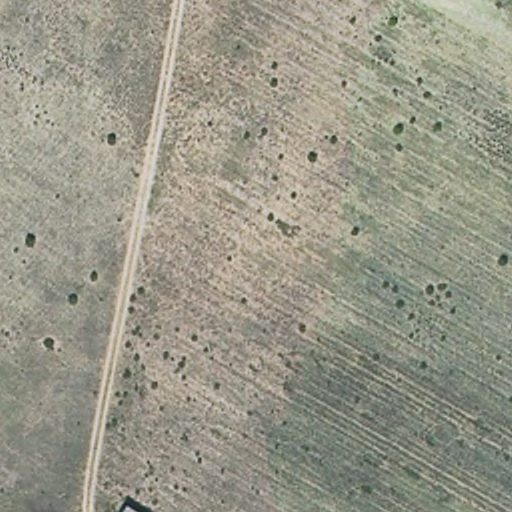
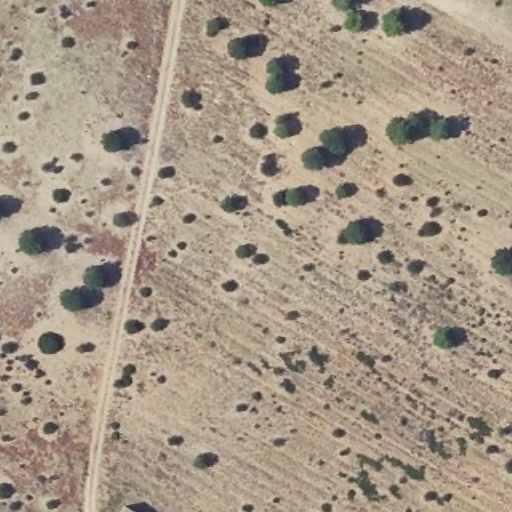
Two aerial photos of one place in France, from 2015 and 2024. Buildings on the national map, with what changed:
unchanged [(140,512),(119,512),(126,502),(140,512)]

